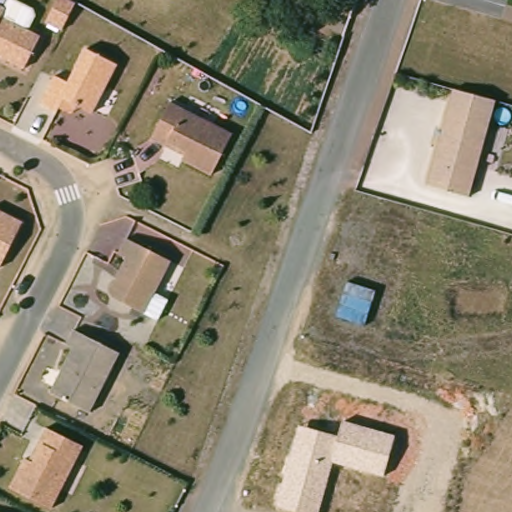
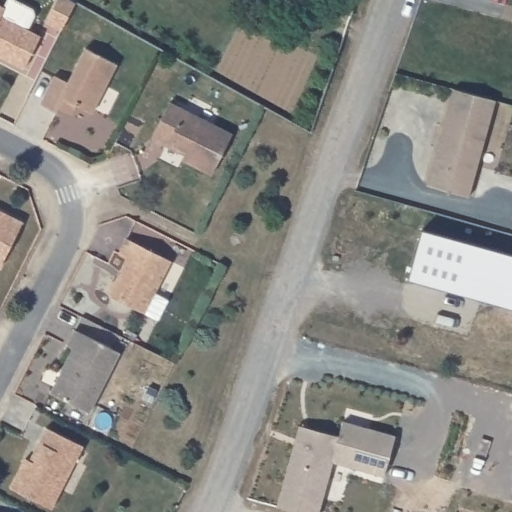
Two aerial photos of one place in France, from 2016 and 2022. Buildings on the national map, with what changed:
unchanged [(0,0),(8,4),(4,16),(0,26),(0,0)]
new [(67,0),(77,6),(63,34),(49,26),(62,0),(67,0)]
unchanged [(4,16),(44,37),(28,69),(0,55),(0,26),(4,16)]
unchanged [(58,107),(55,113),(39,105),(53,76),(66,83),(84,49),(115,65),(90,113),(75,105),(71,114),(58,107)]
unchanged [(496,97),(470,192),(429,182),(454,86),(496,97)]
unchanged [(154,136),(174,100),(235,135),(212,175),(183,159),(186,155),(168,145),(154,136)]
unchanged [(26,224),(3,270),(0,268),(0,210),(26,224)]
new [(512,257),(512,309),(412,281),(426,233),(512,257)]
unchanged [(123,255),(131,240),(175,262),(148,315),(118,299),(117,298),(116,297),(115,296),(114,295),(113,293),(113,292),(113,291),(113,290),(113,288),(113,287),(114,286),(115,285),(115,283),(116,283),(118,281),(119,281),(120,280),(124,273),(131,259),(123,255)]
unchanged [(78,326),(123,350),(93,410),(54,390),(67,363),(77,345),(70,342),(78,326)]
unchanged [(299,425),(338,436),(343,420),(396,435),(385,477),(331,462),(318,512),(300,512),(277,506),(299,425)]
unchanged [(42,440),(49,425),(86,443),(54,506),(13,485),(28,455),(32,458),(42,440)]

